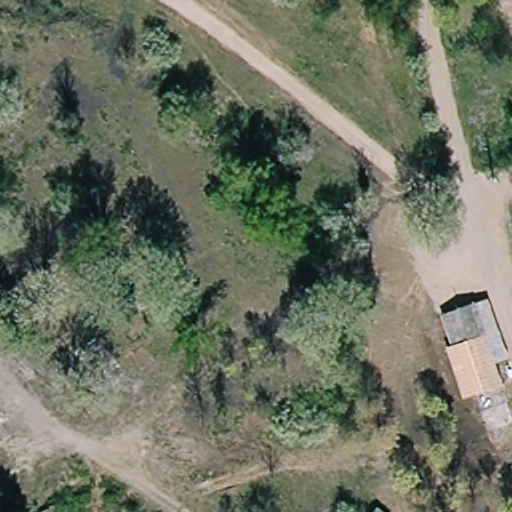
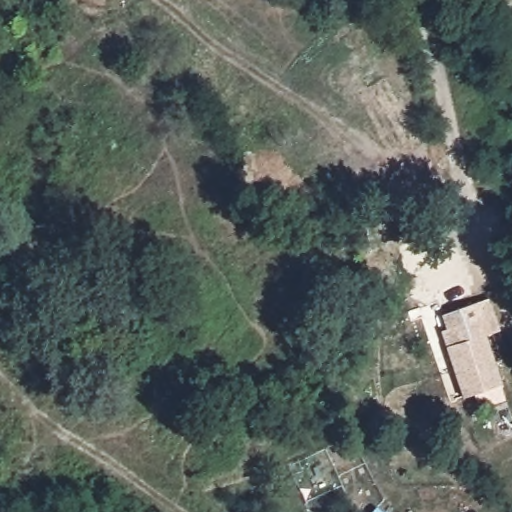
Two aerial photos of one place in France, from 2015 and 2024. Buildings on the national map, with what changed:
unchanged [(475,395),(465,398),(450,340),(446,328),(442,317),(466,309),(483,303),(508,383),(498,387),(503,400),(480,408),(475,395)]

